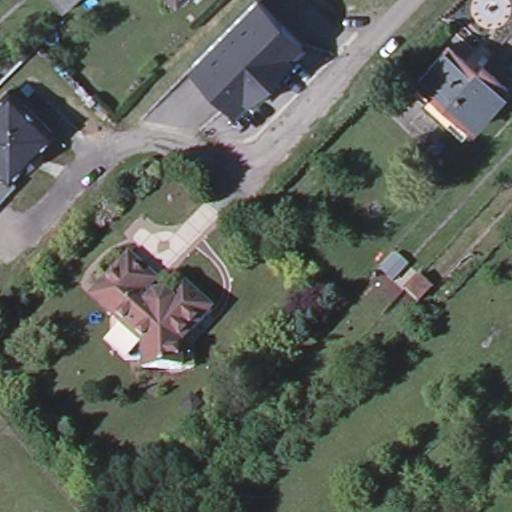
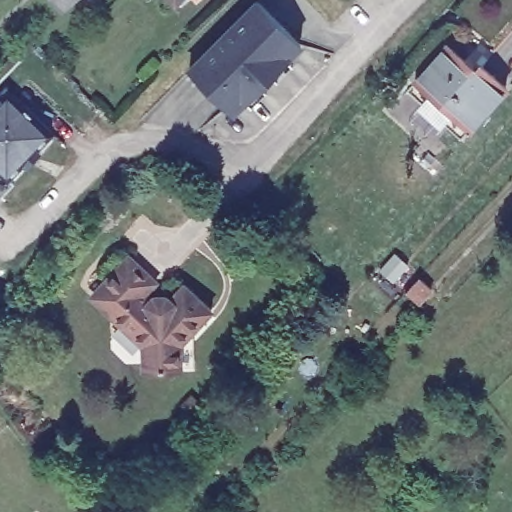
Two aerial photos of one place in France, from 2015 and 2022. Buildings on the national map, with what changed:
unchanged [(60,10),(51,0),(70,0),(60,10)]
unchanged [(172,3),(170,0),(176,0),(172,3)]
unchanged [(244,95),(230,108),(187,64),(251,0),(259,0),(299,40),(285,53),(290,58),(275,74),(270,69),(260,79),(265,84),(249,100),(244,95)]
unchanged [(457,134),(405,86),(444,42),(448,38),(483,69),(501,85),(457,134)]
unchanged [(32,119),(50,136),(7,182),(10,185),(0,196),(0,97),(4,93),(32,119)]
unchanged [(176,367),(140,372),(135,346),(101,313),(105,309),(87,292),(121,255),(149,280),(138,293),(144,298),(149,295),(154,295),(158,296),(162,299),(177,283),(202,306),(182,329),(187,365),(176,367)]

